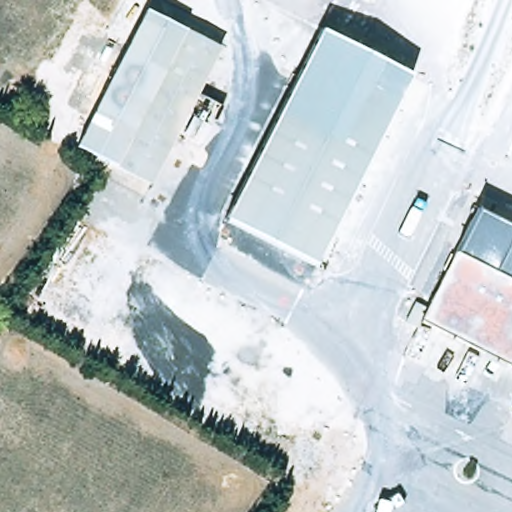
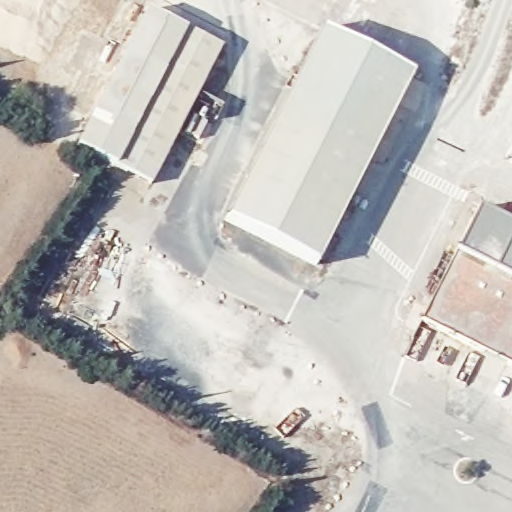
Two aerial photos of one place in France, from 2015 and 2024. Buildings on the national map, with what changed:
unchanged [(148,182),(73,142),(143,5),(218,44),(148,182)]
unchanged [(317,272),(226,227),(322,35),(412,81),(317,272)]
unchanged [(421,313),(477,200),(512,218),(512,359),(421,313)]

